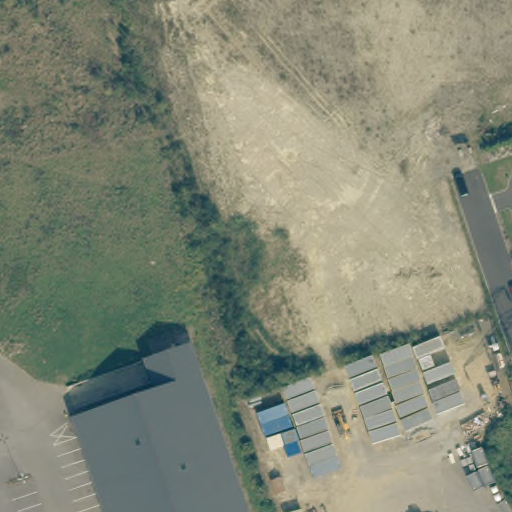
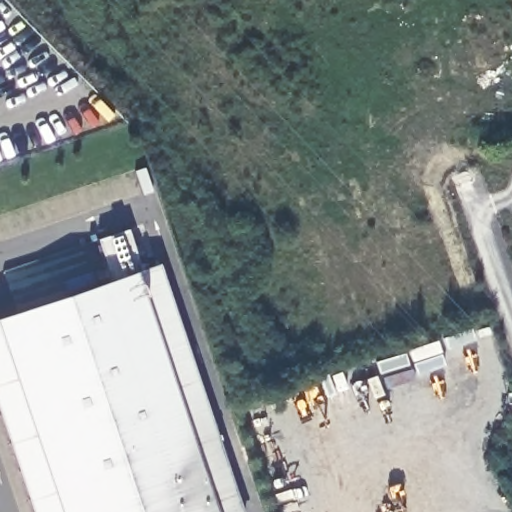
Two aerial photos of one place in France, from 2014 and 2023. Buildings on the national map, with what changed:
new [(134,267),(154,263),(239,512),(26,512),(0,434),(0,312),(89,279),(104,276),(91,239),(120,227),(134,267)]
demolished [(74,418),(162,388),(152,357),(190,345),(247,512),(106,512),(74,418)]

